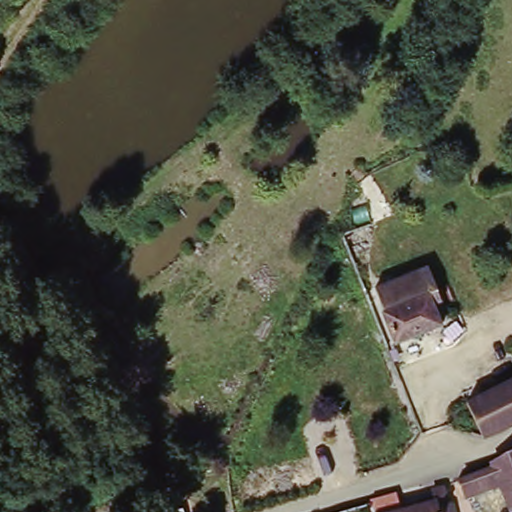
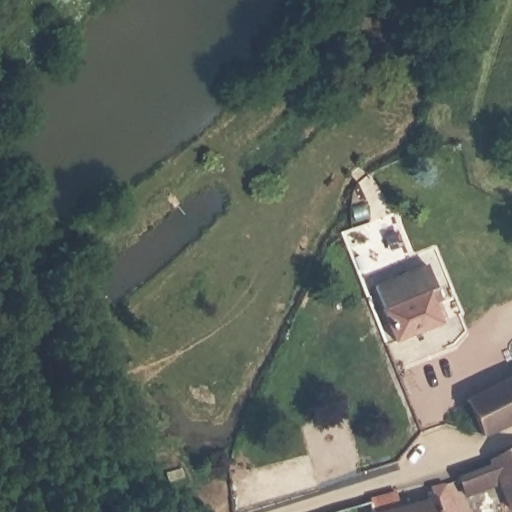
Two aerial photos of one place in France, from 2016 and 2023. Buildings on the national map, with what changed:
unchanged [(442,321),(395,341),(373,292),(419,270),(442,321)]
unchanged [(472,410),(512,391),(512,433),(502,438),(489,446),(472,410)]
unchanged [(506,490),(472,502),(463,482),(499,469),(497,460),(512,455),(512,506),(506,490)]
unchanged [(467,502),(470,512),(404,512),(451,495),(456,506),(467,502)]

